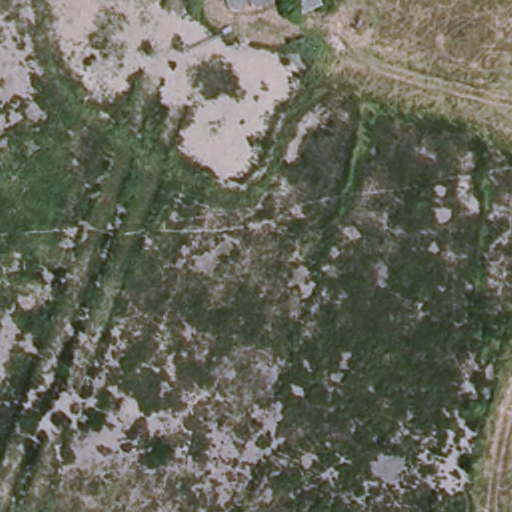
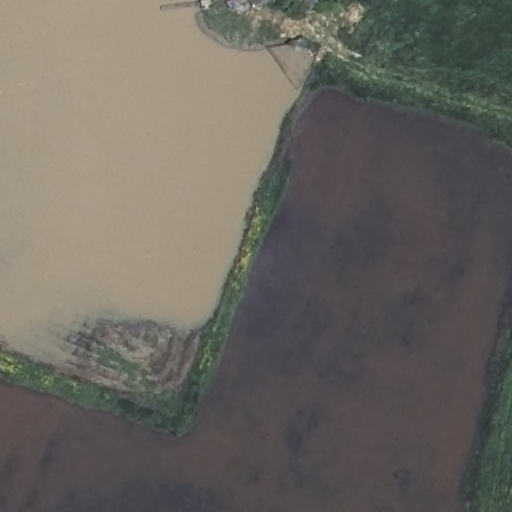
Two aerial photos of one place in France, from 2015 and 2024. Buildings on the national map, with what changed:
unchanged [(250,10),(248,7),(228,10),(225,0),(274,0),(250,10)]
unchanged [(299,14),(293,0),(321,0),(323,4),(299,14)]

